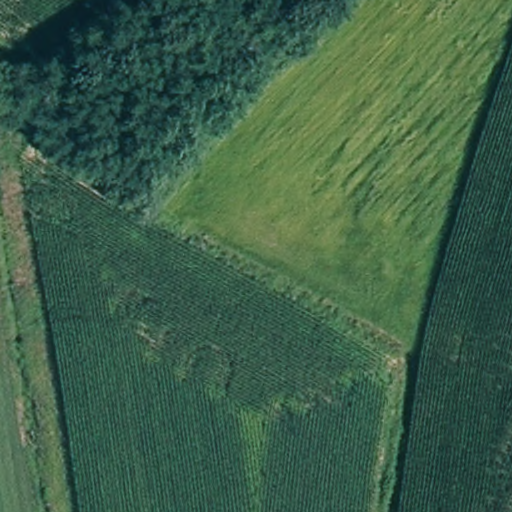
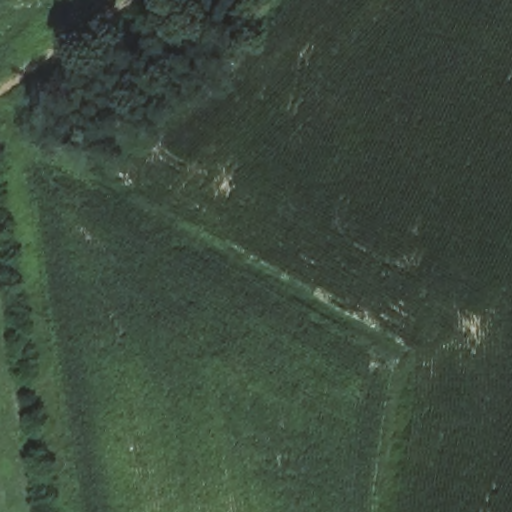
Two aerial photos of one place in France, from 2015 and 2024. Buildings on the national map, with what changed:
[]

